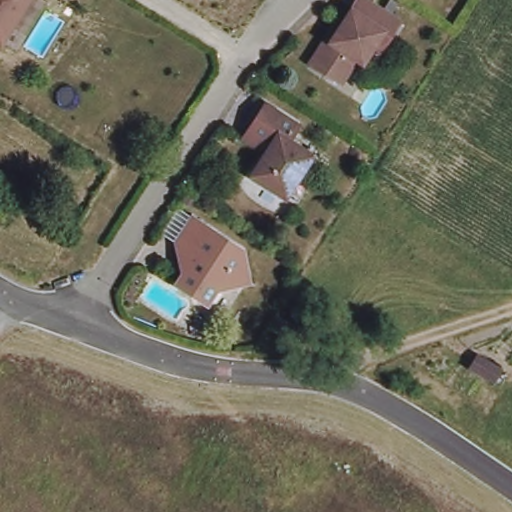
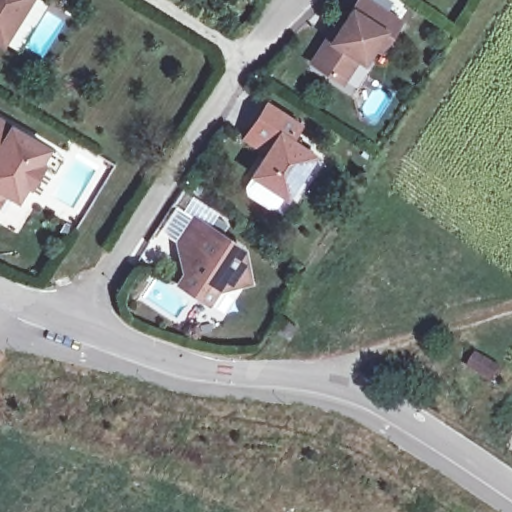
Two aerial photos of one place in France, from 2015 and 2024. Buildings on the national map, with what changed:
unchanged [(0,0),(18,0),(0,28),(0,0)]
unchanged [(331,40),(356,0),(364,0),(397,21),(388,35),(380,49),(373,44),(362,60),(357,57),(340,83),(310,64),(327,37),(331,40)]
unchanged [(292,143),(316,158),(290,201),(255,179),(269,157),(247,144),(254,134),(270,109),(302,129),(292,143)]
new [(51,147),(50,149),(63,157),(53,172),(43,166),(30,188),(27,187),(18,203),(1,193),(0,196),(0,118),(13,126),(51,147)]
unchanged [(243,249),(249,279),(217,287),(208,301),(179,282),(197,255),(178,242),(195,217),(243,249)]
unchanged [(467,370),(478,352),(503,368),(492,384),(467,370)]

